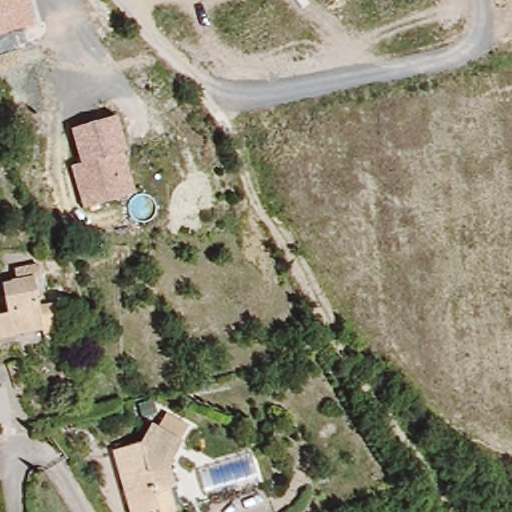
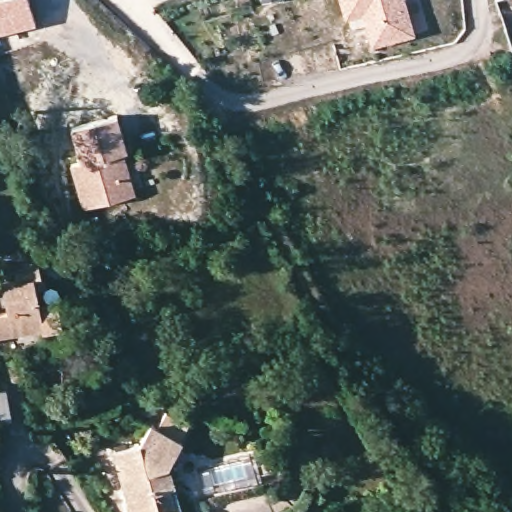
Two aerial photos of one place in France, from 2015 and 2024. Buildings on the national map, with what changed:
unchanged [(32,20),(0,32),(0,0),(25,0),(32,20)]
new [(262,1),(262,0),(265,0),(262,1)]
new [(342,24),(335,2),(334,0),(354,0),(359,18),(342,24)]
new [(412,36),(370,50),(354,0),(400,0),(412,36)]
unchanged [(127,154),(117,159),(128,196),(80,210),(70,168),(79,165),(69,130),(115,117),(127,154)]
unchanged [(48,337),(46,331),(5,344),(7,351),(0,353),(0,320),(5,319),(0,299),(0,290),(19,285),(15,270),(39,263),(46,288),(36,291),(42,313),(62,307),(69,331),(48,337)]
unchanged [(25,425),(0,433),(0,396),(14,391),(25,425)]
unchanged [(129,510),(112,443),(140,437),(150,420),(180,440),(167,465),(180,509),(166,512),(157,512),(155,505),(129,510)]

